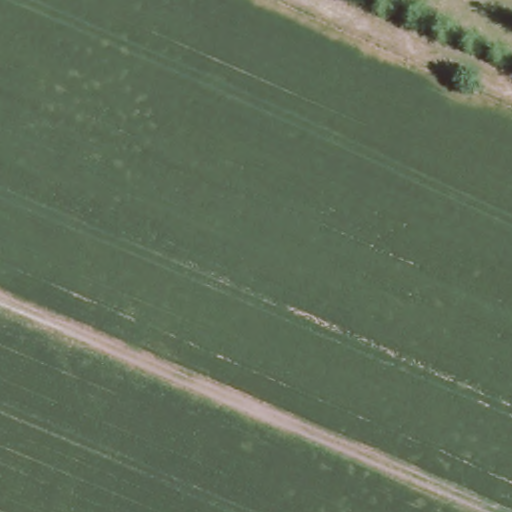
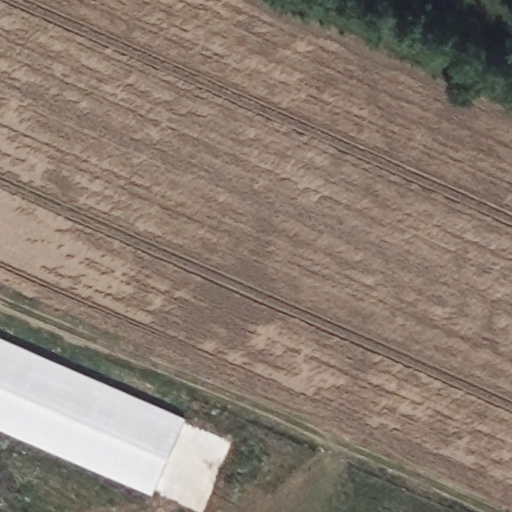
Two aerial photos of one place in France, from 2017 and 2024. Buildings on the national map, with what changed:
new [(0,335),(187,417),(153,495),(0,427),(0,335)]

